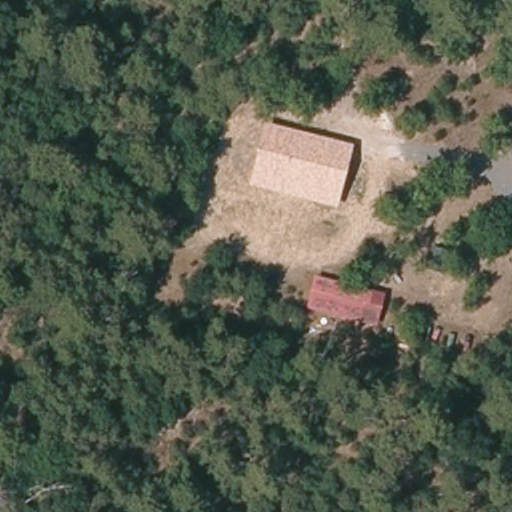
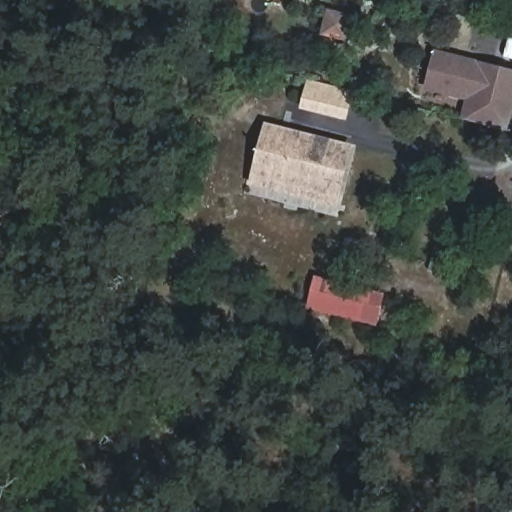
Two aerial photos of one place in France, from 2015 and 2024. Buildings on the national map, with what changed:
new [(511,131),(462,119),(466,97),(427,92),(436,51),(512,70),(512,126),(511,131)]
new [(308,80),(355,91),(348,121),(302,110),(308,80)]
unchanged [(335,208),(247,189),(263,123),(351,146),(335,208)]
unchanged [(375,324),(306,309),(315,274),(385,291),(375,324)]

